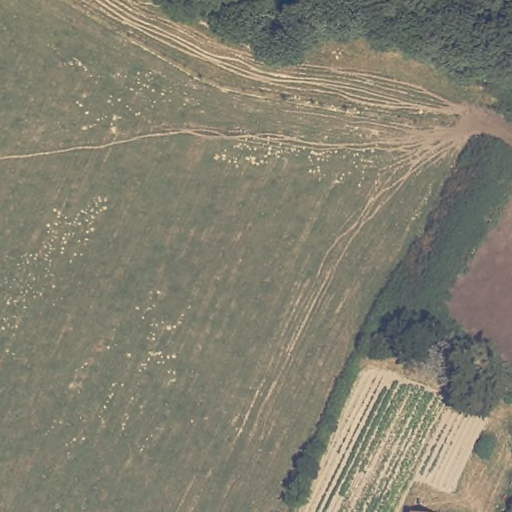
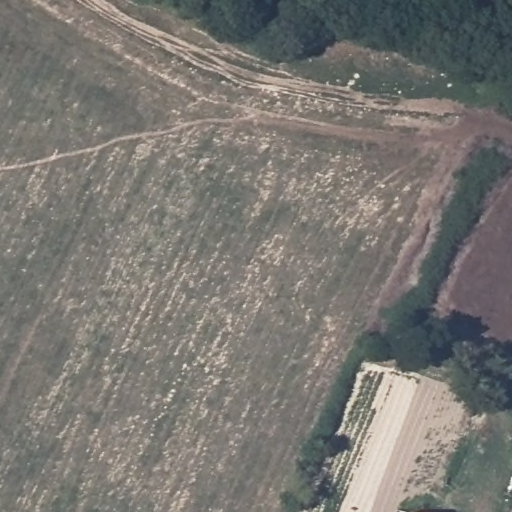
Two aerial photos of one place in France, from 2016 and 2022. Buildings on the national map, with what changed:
unchanged [(411,509),(421,512),(410,512),(411,509)]

